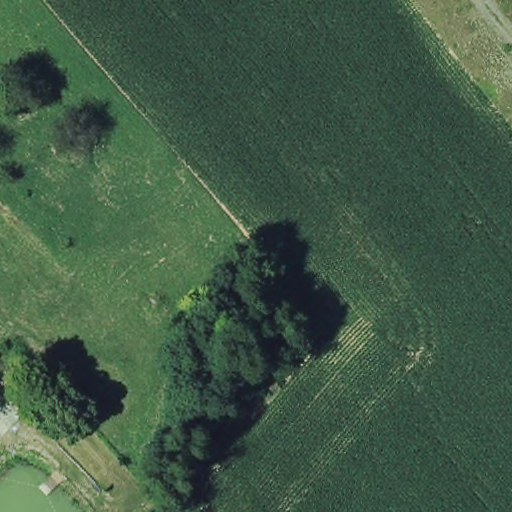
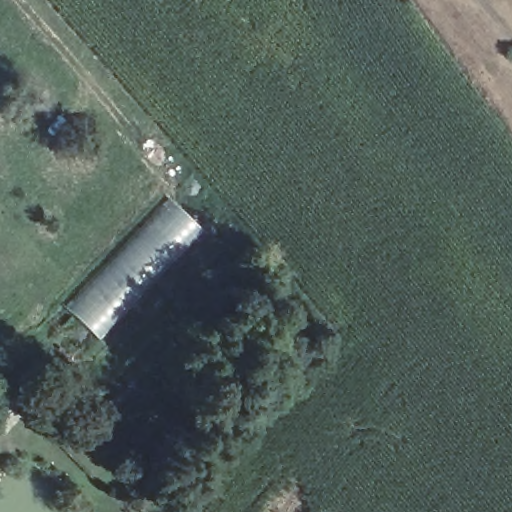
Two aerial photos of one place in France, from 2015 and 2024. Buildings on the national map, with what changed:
new [(166,191),(215,242),(114,356),(65,307),(166,191)]
unchanged [(20,360),(41,384),(23,399),(2,376),(20,360)]

